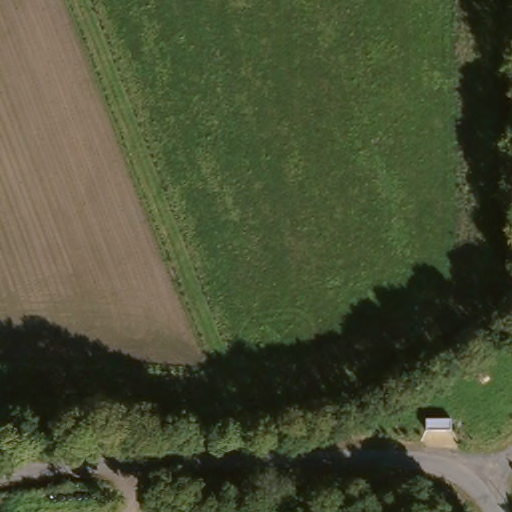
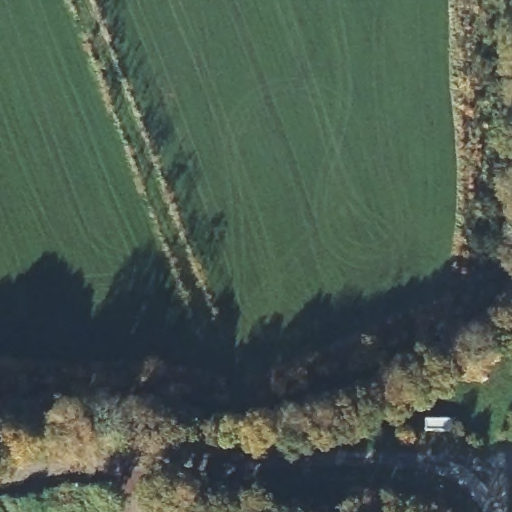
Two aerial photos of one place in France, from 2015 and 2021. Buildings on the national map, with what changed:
unchanged [(159,512),(155,512),(156,511),(159,512)]

